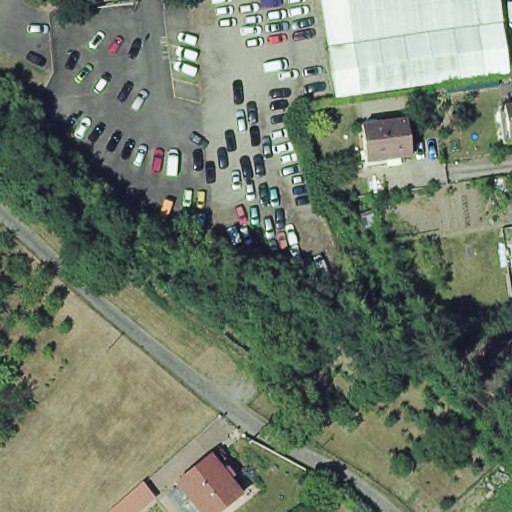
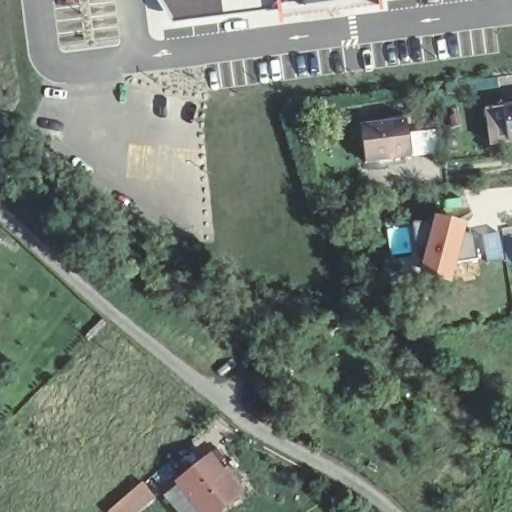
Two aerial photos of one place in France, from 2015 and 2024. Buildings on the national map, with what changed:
new [(150,44),(145,0),(491,0),(150,44)]
demolished [(502,74),(325,105),(313,0),(491,0),(502,74)]
unchanged [(497,106),(512,104),(512,142),(502,143),(497,106)]
unchanged [(410,155),(364,161),(359,125),(405,119),(410,155)]
new [(465,224),(463,235),(474,234),(477,261),(455,265),(450,285),(417,273),(412,224),(431,222),(432,215),(465,224)]
unchanged [(240,496),(218,512),(202,512),(177,481),(208,456),(240,496)]
unchanged [(140,512),(115,512),(137,493),(147,506),(140,512)]

